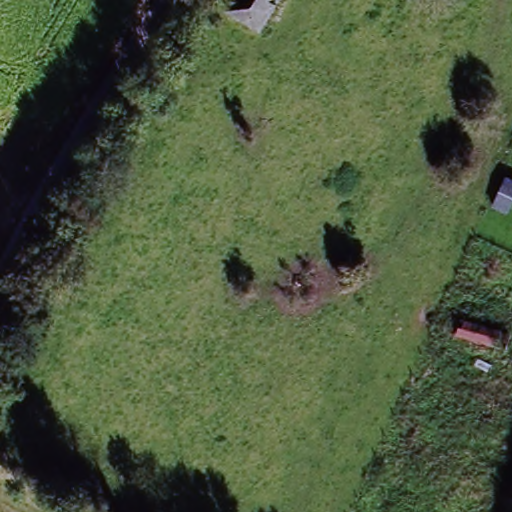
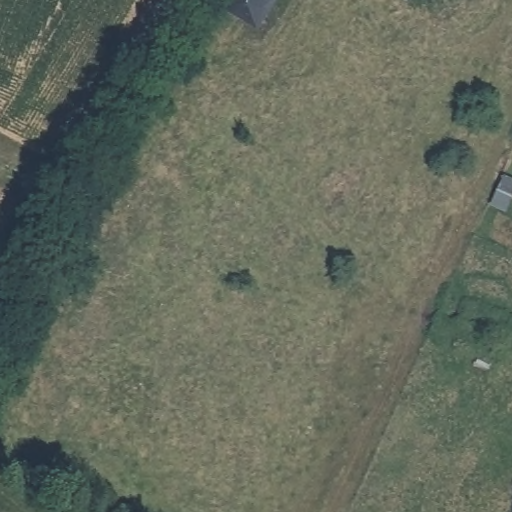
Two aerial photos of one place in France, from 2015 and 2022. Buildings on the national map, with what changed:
unchanged [(230,9),(214,0),(284,0),(260,39),(226,20),(230,9)]
unchanged [(479,319),(475,332),(511,344),(505,362),(453,344),(463,314),(479,319)]

